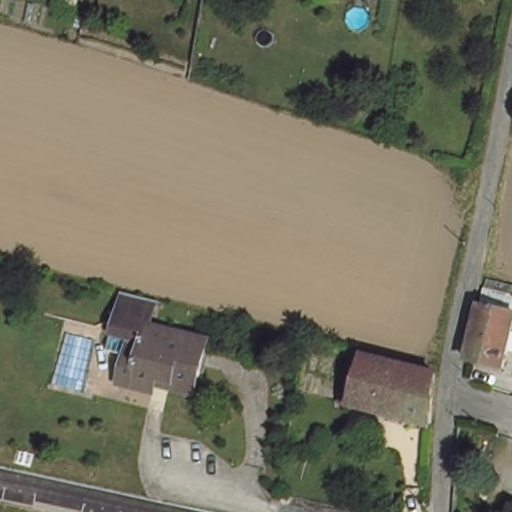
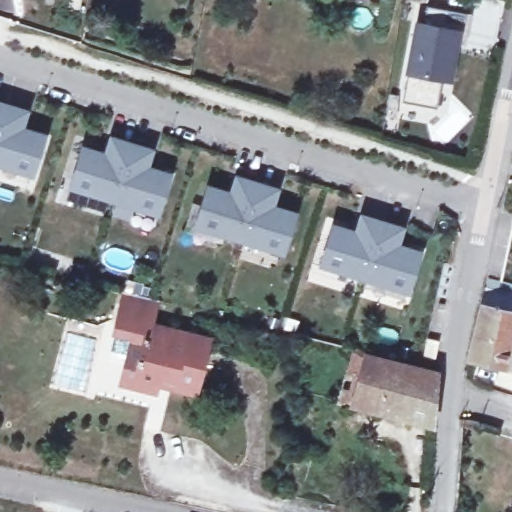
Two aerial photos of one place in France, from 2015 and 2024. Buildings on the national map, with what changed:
new [(414,23),(420,24),(424,6),(464,13),(460,32),(455,31),(447,79),(440,78),(434,108),(399,101),(414,23)]
new [(22,111),(20,119),(29,122),(26,131),(40,136),(28,175),(0,166),(0,105),(22,111)]
new [(93,153),(95,143),(105,146),(107,138),(147,150),(145,158),(154,161),(152,171),(165,175),(154,213),(67,186),(79,148),(93,153)]
new [(218,191),(222,182),(230,185),(233,177),(273,189),(270,197),(280,200),(277,209),(291,214),(280,252),(236,239),(192,225),(204,187),(218,191)]
new [(344,230),(347,221),(356,223),(359,215),(399,228),(396,236),(405,239),(402,248),(417,252),(405,291),(318,264),(330,226),(344,230)]
unchanged [(465,368),(478,316),(482,300),(488,278),(512,283),(512,327),(499,377),(475,371),(465,368)]
unchanged [(122,296),(160,305),(155,329),(145,327),(142,342),(112,336),(122,296)]
unchanged [(192,378),(189,390),(167,386),(169,380),(154,377),(152,387),(120,380),(124,358),(137,361),(142,342),(145,327),(155,329),(204,340),(195,378),(192,378)]
new [(429,338),(440,341),(435,359),(425,357),(429,338)]
unchanged [(432,423),(348,404),(366,351),(435,368),(432,423)]

